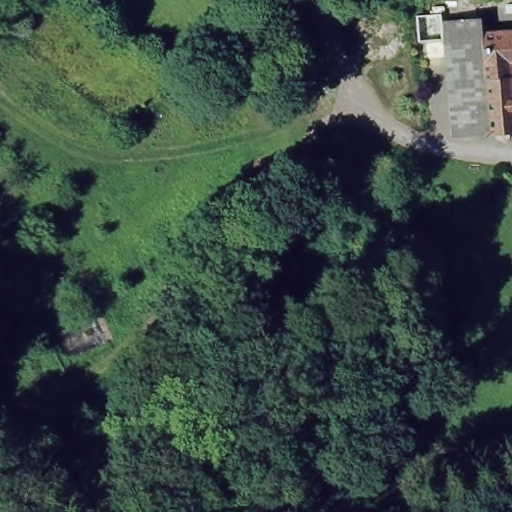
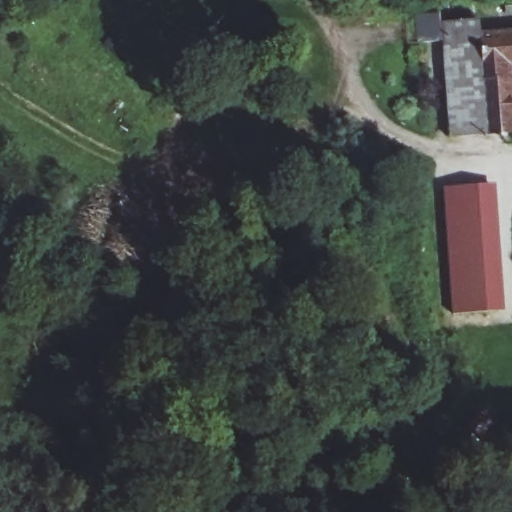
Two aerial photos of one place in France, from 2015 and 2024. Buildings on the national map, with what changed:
unchanged [(267,22),(243,0),(281,0),(285,3),(267,22)]
unchanged [(512,29),(512,64),(505,65),(511,129),(462,134),(457,75),(479,72),(475,33),(512,29)]
unchanged [(479,72),(457,75),(462,134),(443,136),(432,37),(475,33),(479,72)]
new [(454,186),(496,183),(505,310),(463,313),(454,186)]

